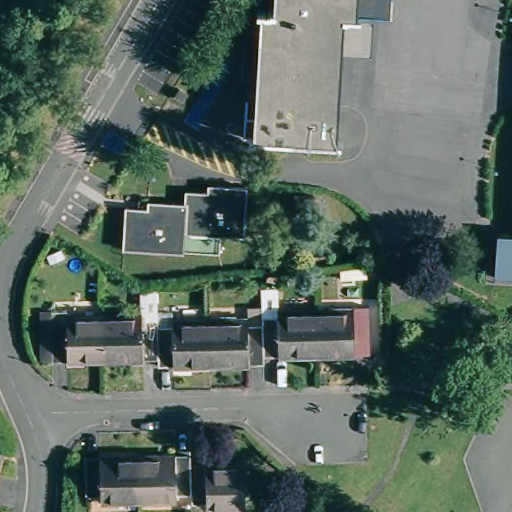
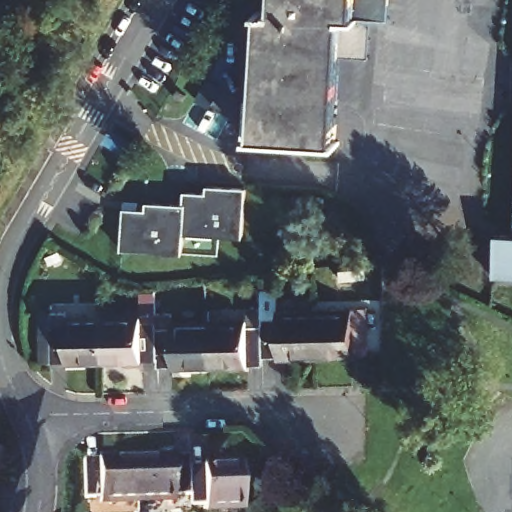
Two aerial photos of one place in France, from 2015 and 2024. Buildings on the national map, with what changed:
unchanged [(250,117),(260,118),(265,14),(277,15),(278,0),(362,0),(360,20),(347,19),(340,145),(258,140),(250,139),(250,117)]
unchanged [(362,0),(393,0),(392,22),(360,20),(362,0)]
unchanged [(185,191),(205,191),(205,185),(245,187),(242,236),(182,232),(183,206),(185,191)]
unchanged [(182,232),(181,252),(120,251),(122,209),(143,210),(144,205),(183,206),(182,232)]
unchanged [(490,277),(493,238),(512,239),(512,279),(490,277)]
unchanged [(374,352),(358,352),(315,353),(315,310),(358,308),(358,315),(373,314),(374,352)]
unchanged [(247,361),(210,362),(209,318),(246,318),(246,323),(261,323),(261,317),(278,316),(278,310),(315,310),(315,353),(279,353),(262,354),(262,361),(247,361)]
unchanged [(209,318),(210,362),(172,362),(158,362),(157,356),(143,357),(105,357),(105,314),(142,313),(142,318),(156,318),(156,325),(172,325),(171,320),(209,318)]
unchanged [(52,321),(67,320),(67,315),(105,314),(105,357),(68,357),(53,357),(52,321)]
unchanged [(0,466),(0,456),(2,457),(0,466)]
unchanged [(107,500),(107,494),(92,494),(92,458),(107,458),(143,458),(143,500),(107,500)]
unchanged [(195,510),(195,494),(182,494),(182,500),(143,500),(143,458),(181,459),(195,459),(195,473),(210,473),(248,474),(248,512),(210,512),(210,510),(195,510)]

